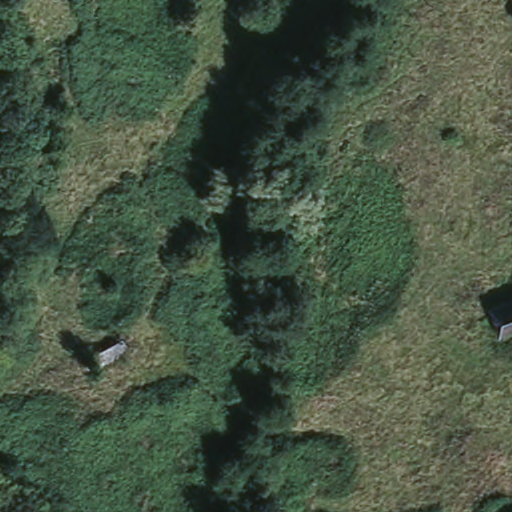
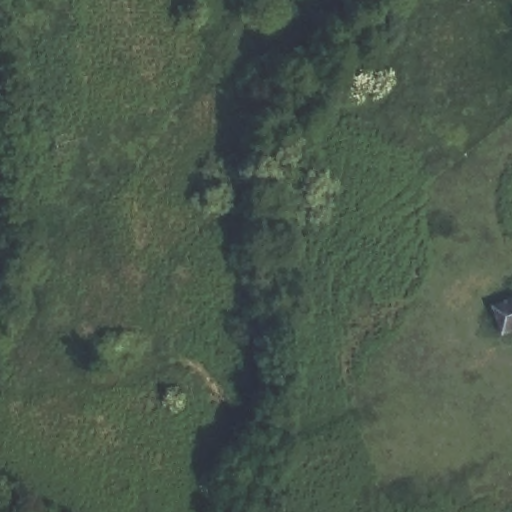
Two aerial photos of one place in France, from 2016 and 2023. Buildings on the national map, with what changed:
unchanged [(512,299),(512,330),(498,335),(486,310),(512,299)]
unchanged [(100,372),(94,357),(125,342),(132,358),(100,372)]

